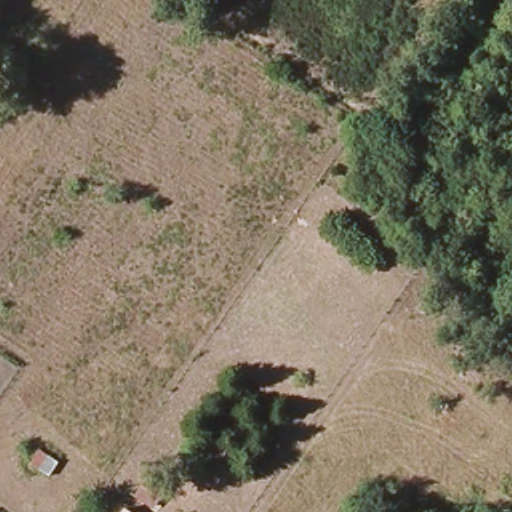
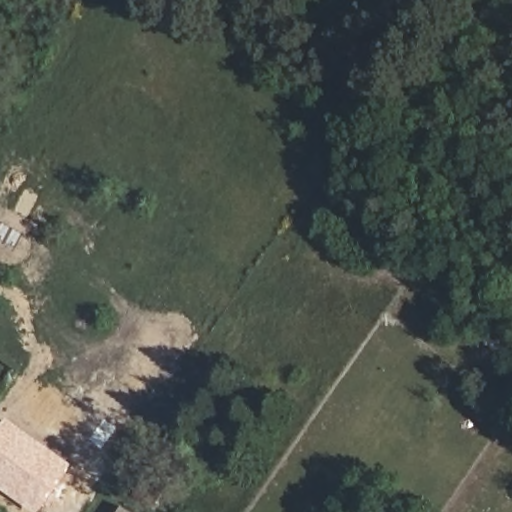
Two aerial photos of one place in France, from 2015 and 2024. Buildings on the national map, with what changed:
new [(9,419),(75,465),(42,512),(35,512),(0,487),(0,433),(9,419)]
unchanged [(135,501),(149,478),(166,493),(151,511),(135,501)]

